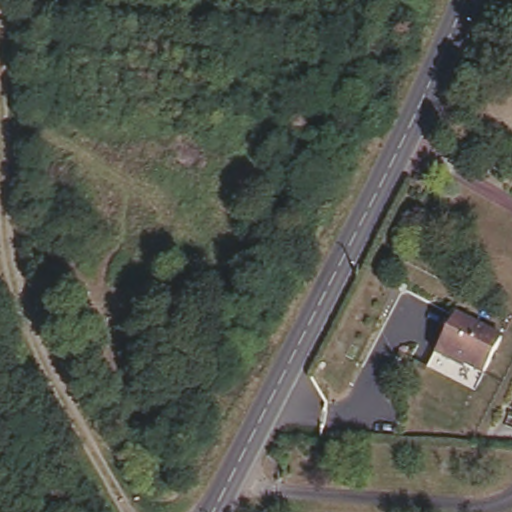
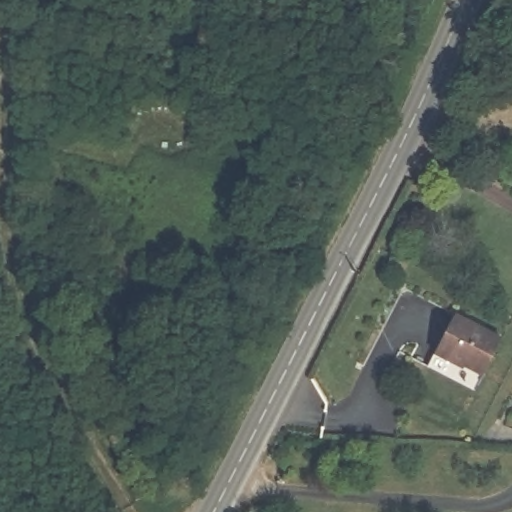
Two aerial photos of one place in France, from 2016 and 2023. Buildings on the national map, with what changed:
unchanged [(475,381),(427,356),(454,304),(501,329),(475,381)]

